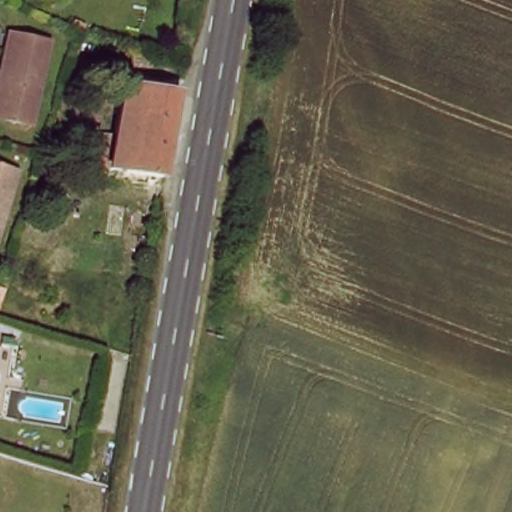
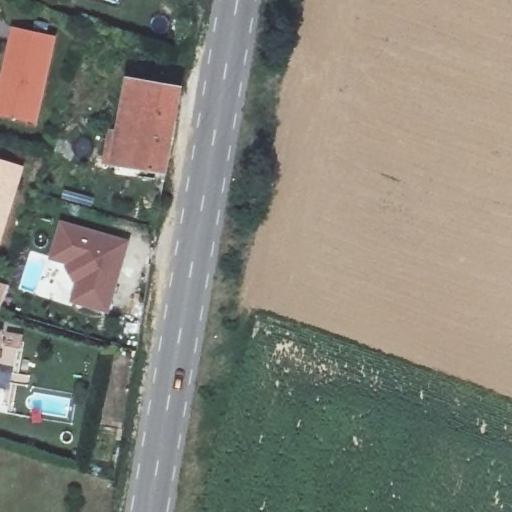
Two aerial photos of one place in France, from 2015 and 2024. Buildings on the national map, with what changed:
unchanged [(58,46),(33,127),(0,117),(0,99),(20,35),(58,46)]
unchanged [(110,168),(115,134),(125,136),(134,86),(186,94),(171,177),(110,168)]
unchanged [(0,247),(0,167),(23,175),(0,247)]
new [(76,285),(67,266),(49,260),(61,222),(133,242),(110,315),(71,303),(76,285)]
new [(10,285),(1,311),(0,311),(0,281),(10,285)]
unchanged [(6,343),(0,360),(0,342),(6,343)]

